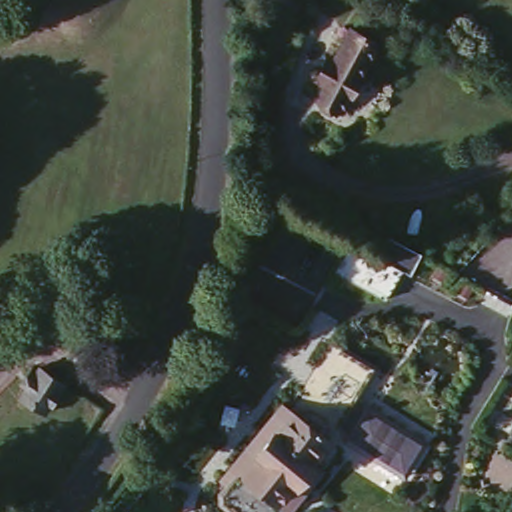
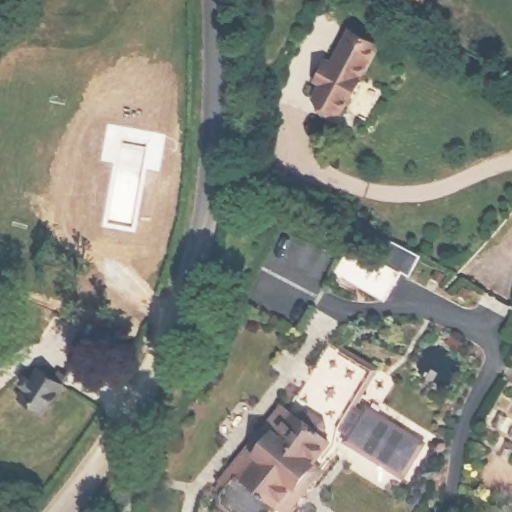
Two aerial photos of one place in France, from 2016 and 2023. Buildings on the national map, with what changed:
unchanged [(427,0),(420,13),(398,0),(427,0)]
unchanged [(377,45),(360,79),(362,79),(350,100),(348,99),(341,114),(313,98),(322,84),(317,80),(323,70),(328,61),(332,64),(350,30),(377,45)]
unchanged [(379,259),(388,240),(406,250),(397,268),(402,270),(387,300),(336,274),(352,245),(365,251),(379,259)]
unchanged [(12,397),(31,368),(46,378),(52,369),(60,374),(35,412),(12,397)]
unchanged [(367,407),(424,441),(403,476),(345,440),(367,407)]
unchanged [(236,416),(230,424),(223,418),(228,411),(236,416)]
unchanged [(254,462),(246,456),(271,424),(284,434),(297,417),(325,437),(311,461),(319,466),(301,494),(292,488),(276,507),(240,477),(254,462)]
unchanged [(272,512),(231,512),(220,504),(220,489),(224,482),(220,479),(240,451),(246,456),(254,462),(240,477),(276,507),(272,512)]

